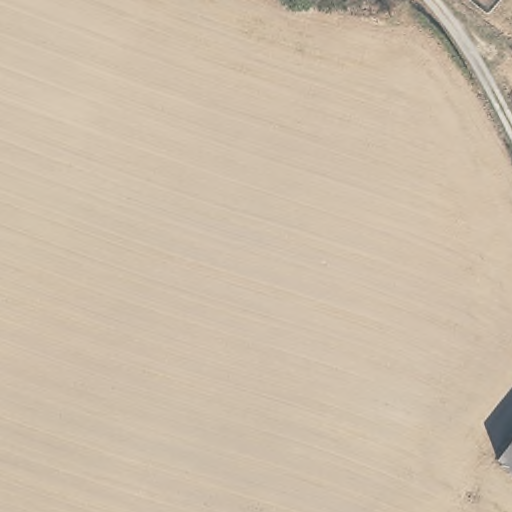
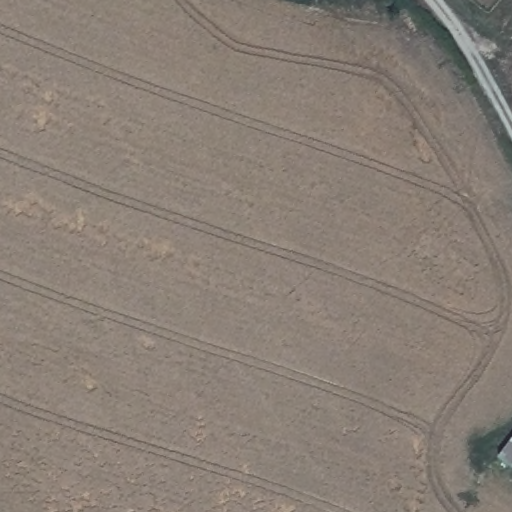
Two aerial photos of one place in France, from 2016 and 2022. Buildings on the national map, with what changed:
unchanged [(497,456),(512,438),(512,468),(497,456)]

